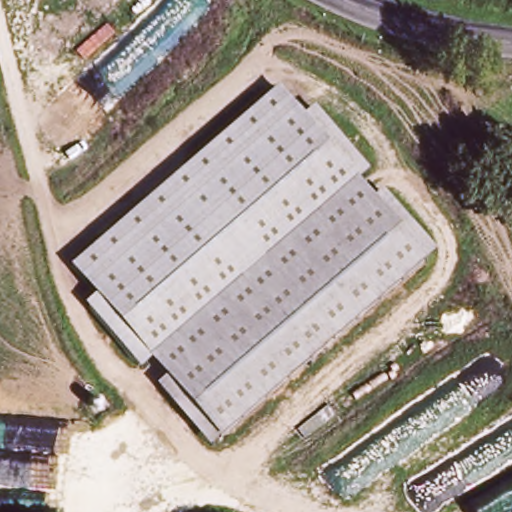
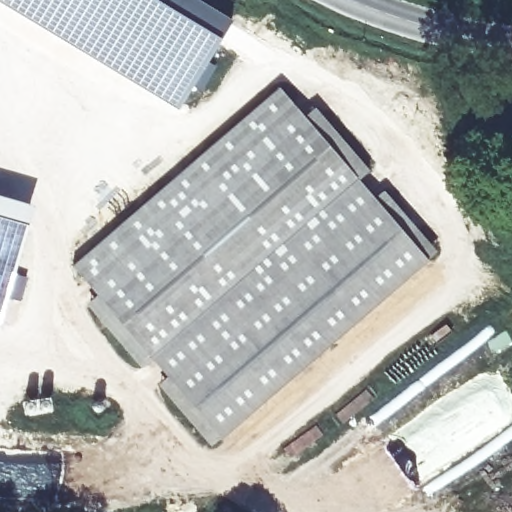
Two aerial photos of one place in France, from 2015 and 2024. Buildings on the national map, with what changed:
new [(180,112),(0,3),(0,2),(1,0),(200,0),(235,21),(180,112)]
unchanged [(144,370),(90,303),(99,295),(75,264),(283,87),(307,114),(317,105),(372,170),(361,180),(152,356),(155,360),(144,370)]
unchanged [(439,252),(428,262),(220,441),(187,399),(176,408),(158,386),(168,378),(155,360),(152,356),(361,180),(377,201),(385,192),(404,214),(439,252)]
new [(16,272),(28,276),(21,301),(9,297),(2,320),(0,320),(0,193),(36,203),(16,272)]

